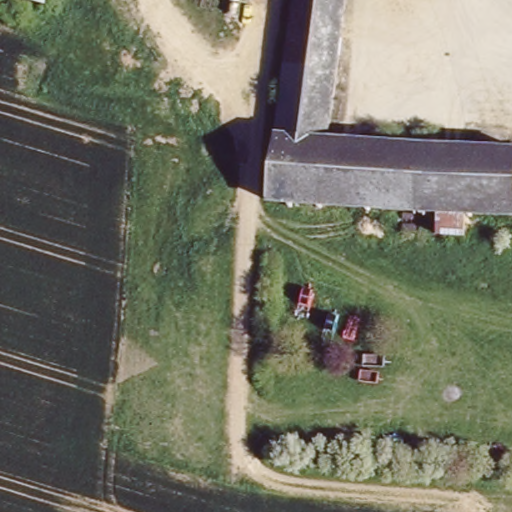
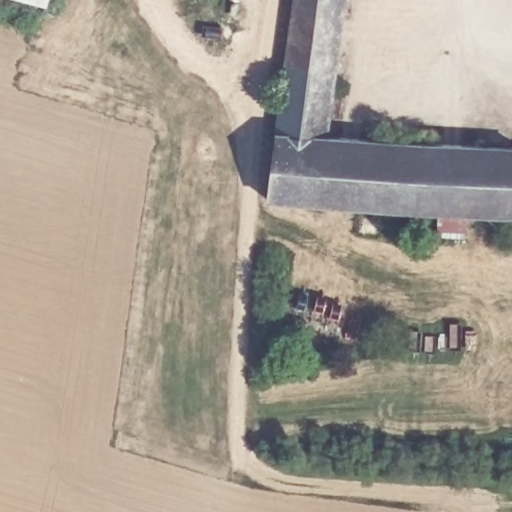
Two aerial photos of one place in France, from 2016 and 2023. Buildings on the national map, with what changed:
unchanged [(42,0),(46,0),(45,1),(42,0)]
unchanged [(348,0),(322,133),(512,148),(512,215),(262,197),(288,0),(348,0)]

